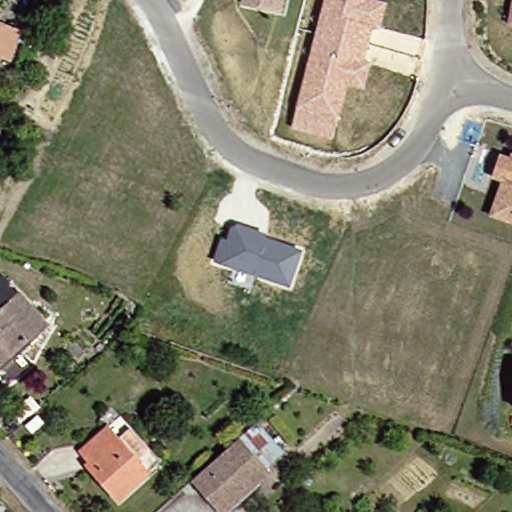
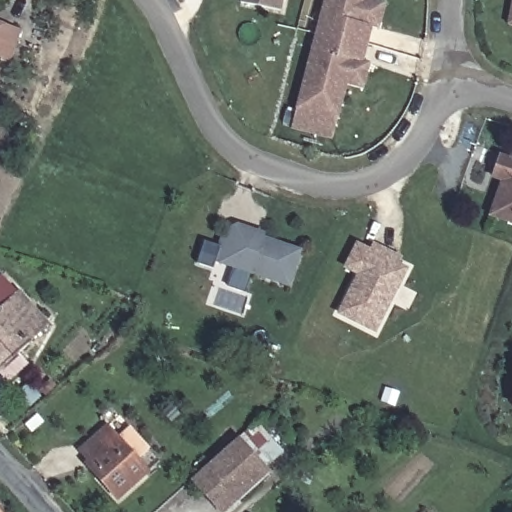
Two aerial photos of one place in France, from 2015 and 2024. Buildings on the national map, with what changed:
unchanged [(239,1),(239,0),(281,0),(280,8),(239,1)]
unchanged [(347,81),(339,116),(298,107),(325,0),(386,0),(380,25),(372,24),(364,58),(371,60),(365,85),(347,81)]
unchanged [(506,18),(508,0),(512,0),(512,20),(506,18)]
unchanged [(4,62),(0,61),(0,29),(14,34),(4,62)]
unchanged [(491,218),(503,185),(492,181),(500,159),(511,163),(512,160),(512,226),(491,218)]
unchanged [(291,288),(211,261),(220,235),(227,236),(230,226),(239,223),(271,235),(268,240),(303,251),(291,288)]
new [(373,242),(402,256),(398,262),(409,268),(376,333),(336,314),(356,274),(343,268),(357,243),(370,248),(373,242)]
unchanged [(24,341),(10,356),(17,364),(0,381),(0,306),(7,301),(30,321),(17,335),(24,341)]
unchanged [(106,505),(76,475),(82,470),(69,454),(95,436),(106,445),(117,434),(139,456),(127,468),(137,479),(106,505)]
unchanged [(245,435),(267,461),(219,505),(196,478),(245,435)]

